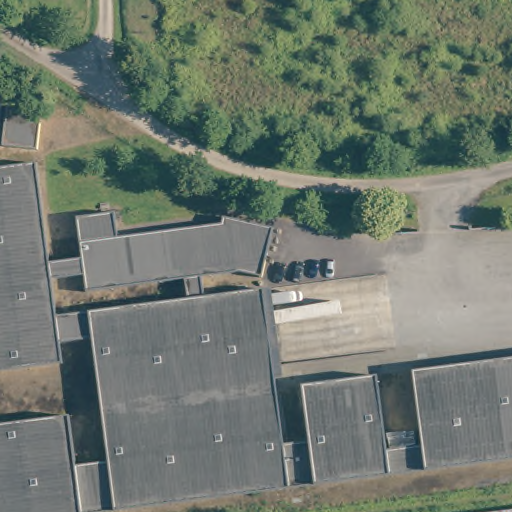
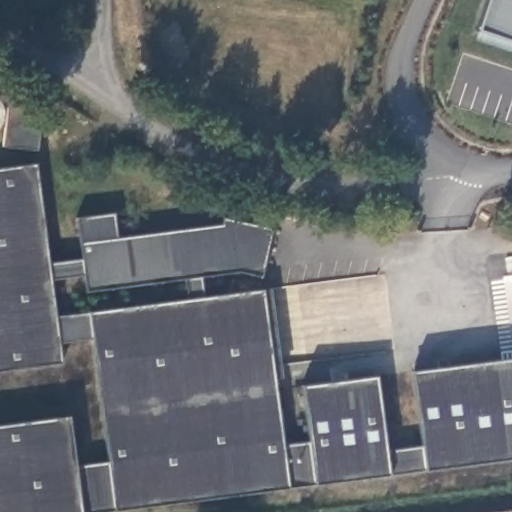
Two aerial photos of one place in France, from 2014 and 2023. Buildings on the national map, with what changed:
new [(475,39),(477,29),(487,0),(512,0),(512,52),(475,39)]
unchanged [(1,118),(0,121),(0,106),(1,112),(1,118)]
unchanged [(3,146),(7,106),(42,110),(38,150),(3,146)]
unchanged [(301,386),(377,376),(387,450),(421,445),(412,371),(512,358),(512,460),(228,497),(214,498),(112,512),(0,512),(0,424),(69,415),(75,465),(107,461),(91,339),(60,343),(62,363),(0,371),(0,167),(36,162),(50,262),(80,258),(81,258),(76,216),(115,211),(118,236),(221,223),(222,217),(272,228),(262,275),(262,277),(258,276),(240,272),(202,277),(204,284),(205,296),(263,289),(274,365),(284,443),(308,440),(301,386)]
unchanged [(506,512),(512,511),(512,512),(506,512)]

